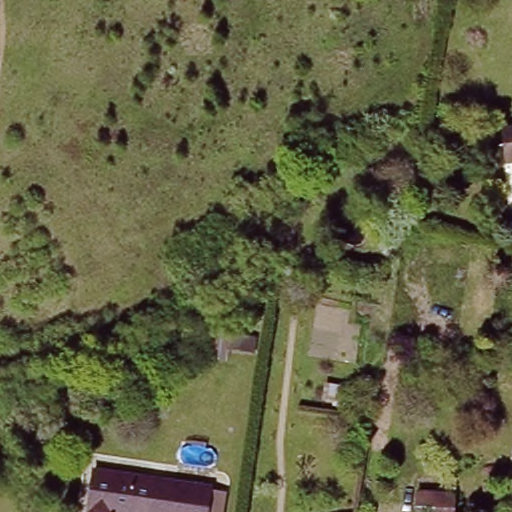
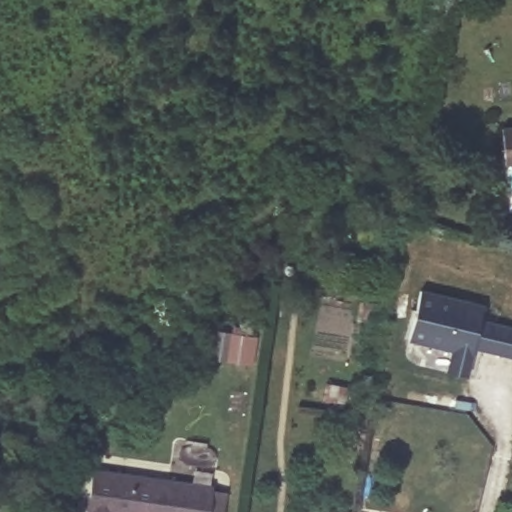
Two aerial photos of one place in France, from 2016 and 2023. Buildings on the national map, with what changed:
unchanged [(510,162),(506,126),(512,126),(512,162),(510,162)]
new [(472,346),(467,376),(445,371),(450,350),(408,340),(420,289),(483,305),(480,318),(512,327),(512,358),(472,346)]
new [(214,330),(260,336),(257,354),(226,349),(225,362),(210,359),(214,330)]
unchanged [(113,512),(87,512),(94,464),(211,480),(207,512),(121,512),(113,511),(113,512)]
demolished [(460,497),(460,512),(422,512),(422,495),(460,497)]

